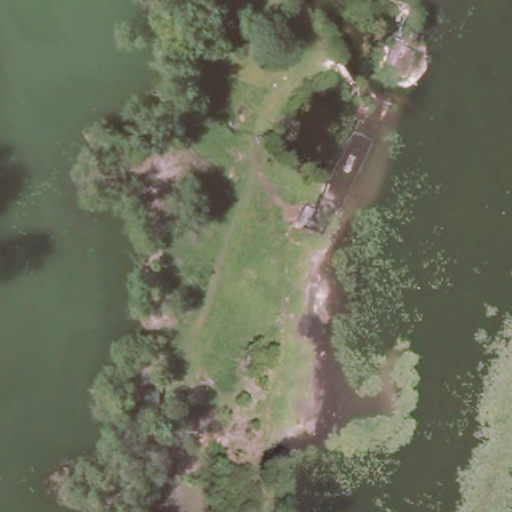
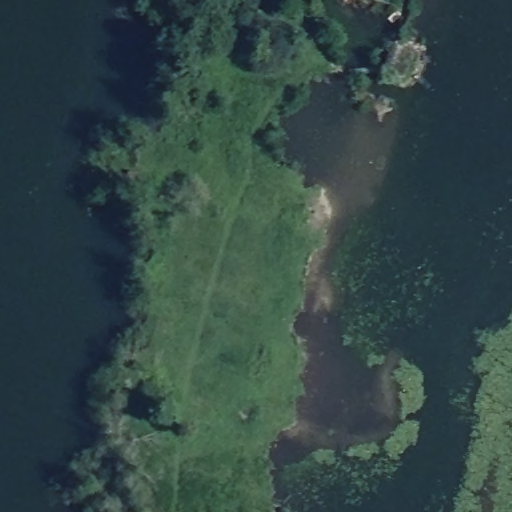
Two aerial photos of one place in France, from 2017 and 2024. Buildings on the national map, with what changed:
unchanged [(394,65),(397,49),(413,53),(411,66),(394,65)]

